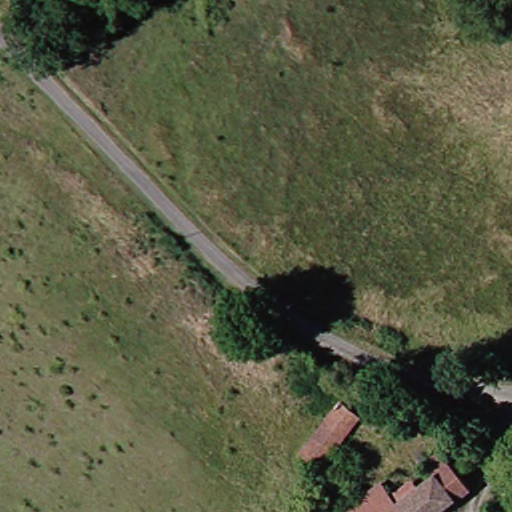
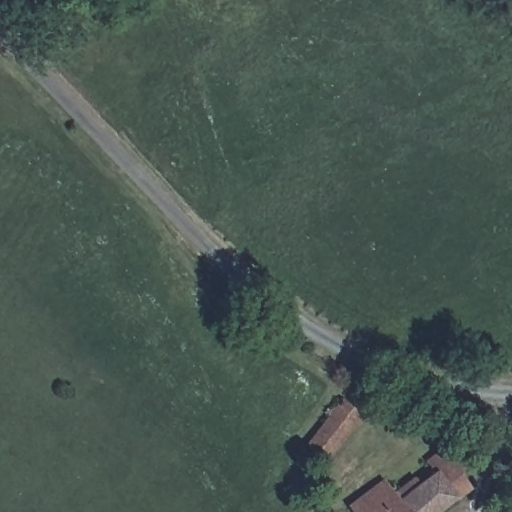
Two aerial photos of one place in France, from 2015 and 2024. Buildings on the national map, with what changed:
unchanged [(357,404),(376,418),(337,467),(320,453),(357,404)]
unchanged [(410,491),(425,476),(432,484),(446,473),(438,460),(452,449),(480,481),(445,512),(362,512),(398,477),(410,491)]

